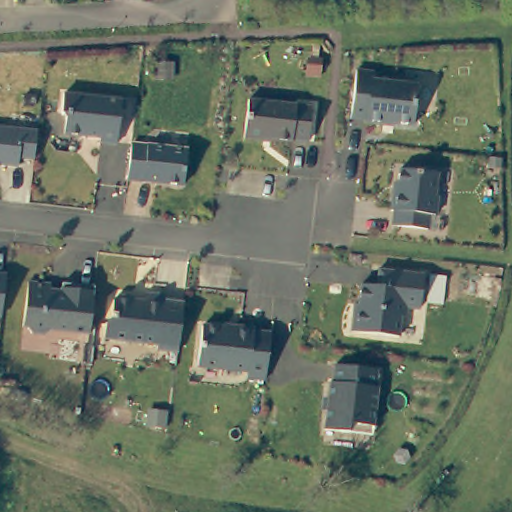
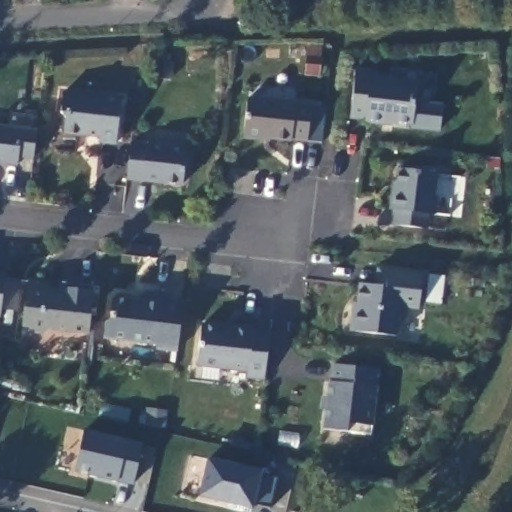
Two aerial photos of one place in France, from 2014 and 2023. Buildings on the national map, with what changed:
unchanged [(364,123),(364,120),(350,119),(355,71),(372,72),(372,80),(417,85),(412,126),(382,123),(382,125),(364,123)]
unchanged [(121,100),(115,145),(99,144),(99,137),(63,135),(65,119),(61,114),(63,94),(121,100)]
unchanged [(263,141),(243,140),(247,100),(311,107),(307,142),(291,141),(263,139),(263,141)]
unchanged [(17,157),(16,166),(0,164),(0,127),(35,131),(33,151),(32,159),(17,157)]
unchanged [(183,185),(126,180),(130,145),(186,150),(183,185)]
unchanged [(436,175),(433,198),(436,198),(434,216),(428,215),(426,230),(391,226),(393,211),(389,211),(391,193),(396,194),(398,170),(436,175)]
unchanged [(418,310),(406,308),(405,318),(400,318),(397,337),(350,332),(353,305),(358,305),(359,285),(375,287),(377,270),(387,271),(422,275),(418,310)]
unchanged [(0,313),(0,274),(4,275),(0,313)]
unchanged [(50,330),(45,334),(31,333),(26,327),(22,326),(27,282),(49,285),(49,292),(61,293),(62,283),(93,287),(88,334),(50,330)]
unchanged [(176,351),(156,350),(156,345),(103,338),(105,323),(110,319),(112,299),(117,295),(129,296),(133,302),(143,302),(144,293),(163,295),(163,300),(182,302),(176,351)]
unchanged [(269,334),(264,380),(246,378),(246,371),(196,366),(201,326),(232,330),(232,327),(253,330),(252,332),(269,334)]
unchanged [(333,366),(375,371),(373,388),(376,388),(372,427),(348,425),(347,433),(323,430),(328,383),(331,383),(333,366)]
new [(135,486),(73,471),(83,429),(145,443),(135,486)]
new [(272,508),(255,505),(254,511),(199,498),(208,457),(263,470),(262,476),(279,479),(272,508)]

